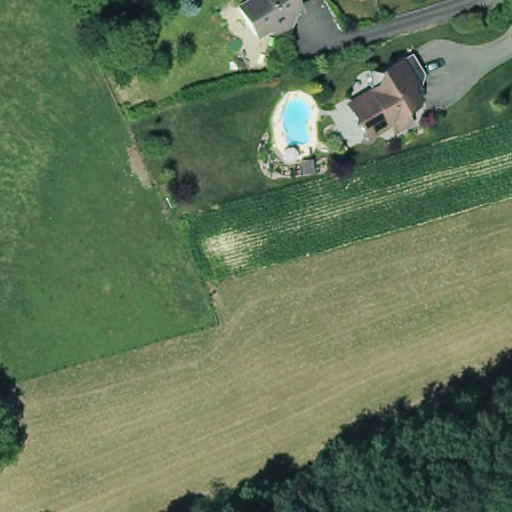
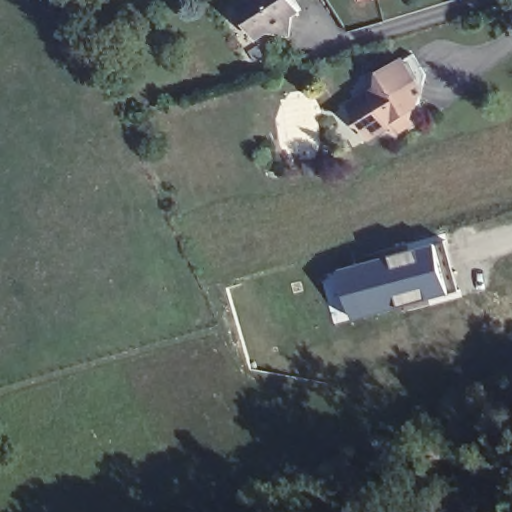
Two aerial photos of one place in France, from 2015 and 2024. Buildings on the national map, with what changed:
unchanged [(248,26),(238,10),(251,0),(294,0),(301,9),(293,16),(289,32),(288,37),(283,34),(267,30),(256,38),(248,26)]
unchanged [(424,86),(418,113),(403,121),(409,132),(394,141),(390,134),(368,147),(361,135),(354,134),(355,126),(348,114),(386,91),(381,84),(412,65),(422,81),(424,86)]
new [(453,236),(465,288),(361,316),(349,269),(453,236)]

